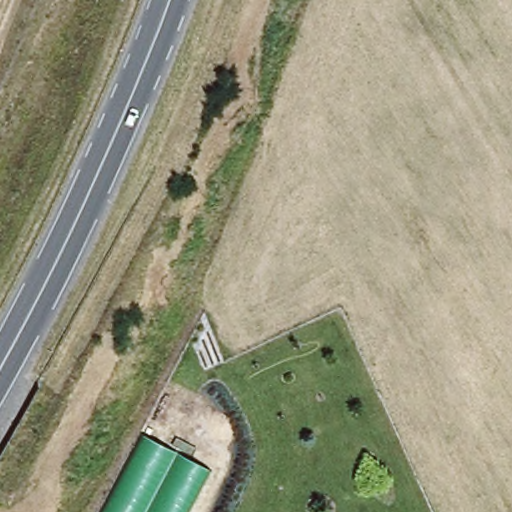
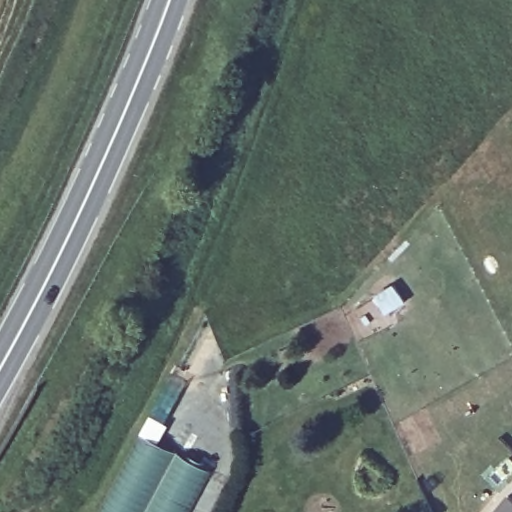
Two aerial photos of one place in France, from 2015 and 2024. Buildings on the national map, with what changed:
unchanged [(209,469),(186,512),(102,512),(143,433),(209,469)]
new [(507,492),(512,496),(512,512),(490,512),(507,492)]

